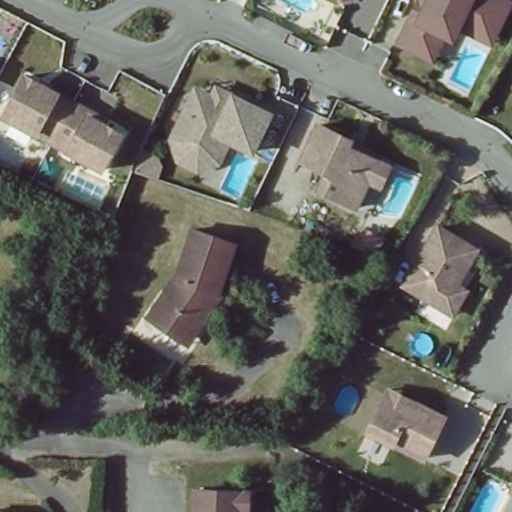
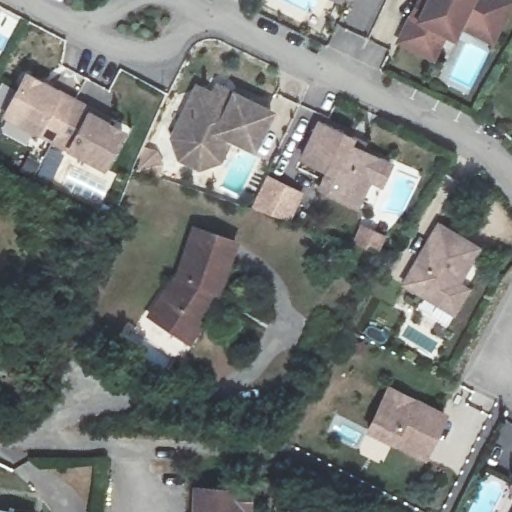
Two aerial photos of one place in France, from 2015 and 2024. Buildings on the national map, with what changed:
unchanged [(406,39),(419,13),(425,0),(512,0),(512,18),(505,30),(500,41),(467,24),(461,36),(452,31),(440,55),(432,51),(406,39)]
unchanged [(81,101),(97,109),(113,118),(110,122),(128,131),(109,166),(60,140),(9,113),(31,74),(81,101)]
unchanged [(201,175),(181,165),(174,145),(180,133),(200,93),(208,90),(219,96),(223,86),(233,91),(278,113),(256,157),(231,145),(220,169),(201,175)]
unchanged [(382,189),(370,183),(357,209),(319,192),(329,172),(303,160),(320,124),(353,139),(367,146),(363,154),(378,161),(393,170),(382,189)]
new [(290,223),(252,205),(267,174),(304,192),(290,223)]
unchanged [(459,313),(444,304),(410,285),(444,227),(482,249),(462,285),(472,291),(459,313)]
unchanged [(187,346),(177,339),(145,312),(185,262),(202,228),(246,245),(225,291),(228,295),(187,346)]
unchanged [(425,458),(370,430),(387,397),(391,389),(415,401),(447,417),(425,458)]
unchanged [(256,495),(255,503),(247,503),(246,512),(200,512),(200,495),(256,495)]
unchanged [(30,512),(0,512),(0,507),(30,511),(30,512)]

